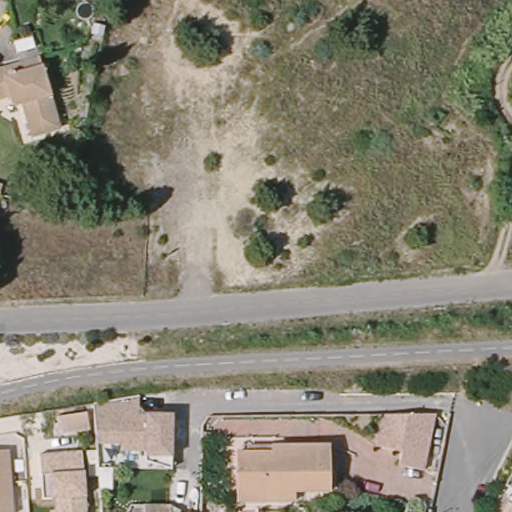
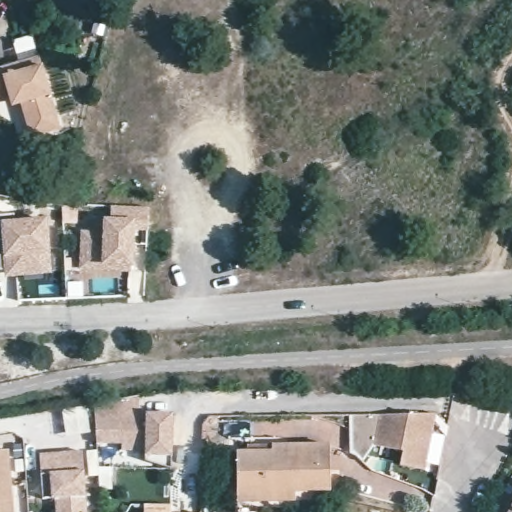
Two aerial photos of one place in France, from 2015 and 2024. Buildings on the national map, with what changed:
demolished [(132,11),(136,0),(158,0),(158,13),(155,14),(152,47),(133,44),(137,12),(132,11)]
unchanged [(60,129),(34,136),(23,104),(20,103),(15,103),(12,99),(0,102),(0,71),(41,60),(60,129)]
new [(82,232),(103,233),(104,223),(109,224),(110,206),(148,208),(147,229),(132,228),(130,265),(103,263),(102,269),(80,268),(82,232)]
new [(13,223),(45,221),(48,274),(15,277),(15,271),(0,271),(0,215),(12,214),(13,223)]
new [(5,277),(5,271),(15,271),(15,277),(5,277)]
unchanged [(55,420),(92,415),(91,408),(139,401),(142,417),(170,418),(172,469),(162,470),(162,467),(143,467),(142,455),(121,454),(117,447),(96,449),(92,432),(80,433),(82,451),(60,454),(57,435),(55,420)]
unchanged [(380,419),(433,417),(423,475),(398,468),(400,452),(372,449),(380,419)]
unchanged [(235,499),(235,458),(269,458),(268,450),(327,450),(327,495),(292,496),(292,505),(282,505),(255,506),(235,506),(235,499)]
unchanged [(86,512),(54,512),(54,500),(41,499),(40,455),(60,454),(82,451),(86,512)]
unchanged [(12,512),(0,512),(0,456),(7,456),(12,512)]
unchanged [(512,502),(512,512),(506,512),(512,502)]
unchanged [(140,505),(177,506),(178,512),(140,512),(140,505)]

